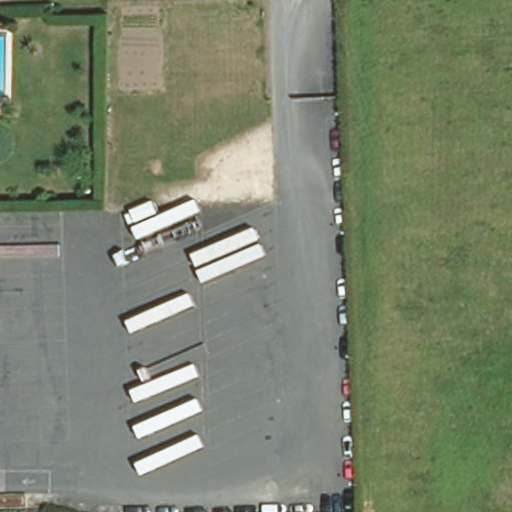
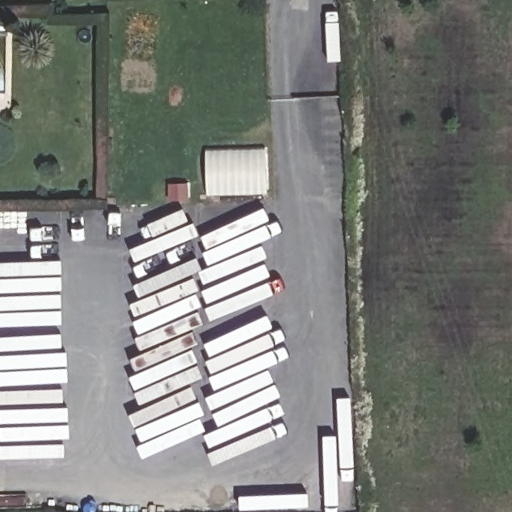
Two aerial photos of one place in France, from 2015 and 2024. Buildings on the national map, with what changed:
new [(206,194),(205,151),(263,149),(265,193),(206,194)]

